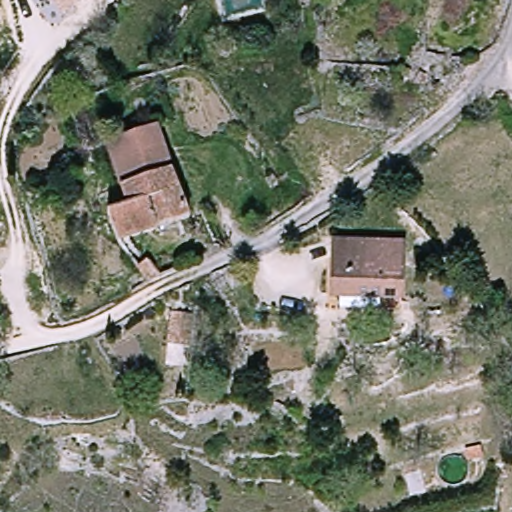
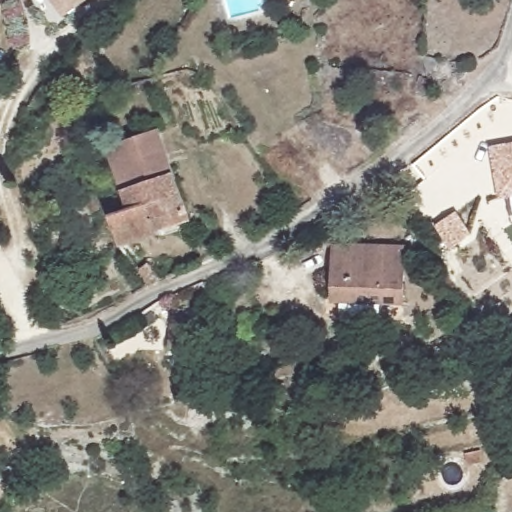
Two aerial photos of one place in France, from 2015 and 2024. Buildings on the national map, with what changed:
unchanged [(62,19),(49,0),(86,0),(62,19)]
unchanged [(165,171),(166,171),(190,217),(130,247),(138,262),(133,266),(122,252),(106,223),(128,212),(98,155),(146,131),(165,171)]
new [(506,143),(507,146),(512,145),(512,197),(499,200),(489,147),(506,143)]
unchanged [(331,306),(325,248),(401,241),(407,296),(375,300),(377,316),(340,321),(338,304),(331,306)]
unchanged [(166,260),(177,277),(165,283),(154,267),(166,260)]
unchanged [(195,322),(188,358),(168,355),(174,321),(195,322)]

